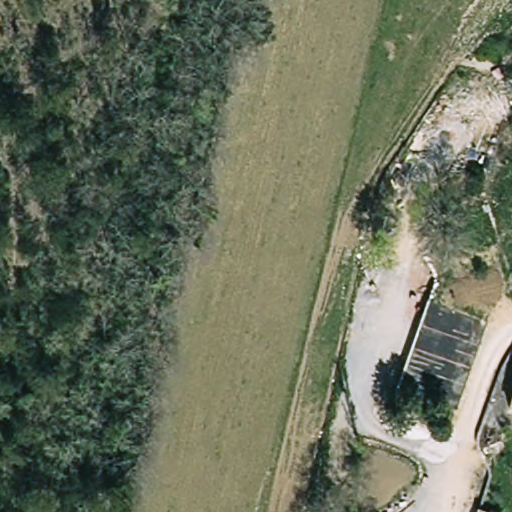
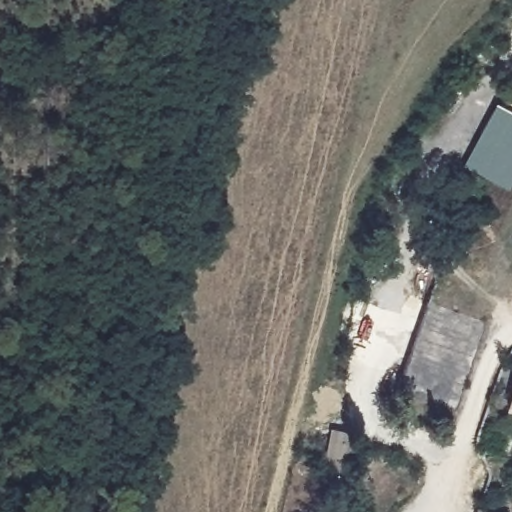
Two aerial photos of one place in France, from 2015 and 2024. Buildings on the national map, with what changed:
new [(510,191),(463,167),(496,105),(512,113),(512,187),(510,191)]
unchanged [(512,398),(512,407),(510,407),(512,398)]
unchanged [(474,507),(490,512),(473,512),(474,507)]

